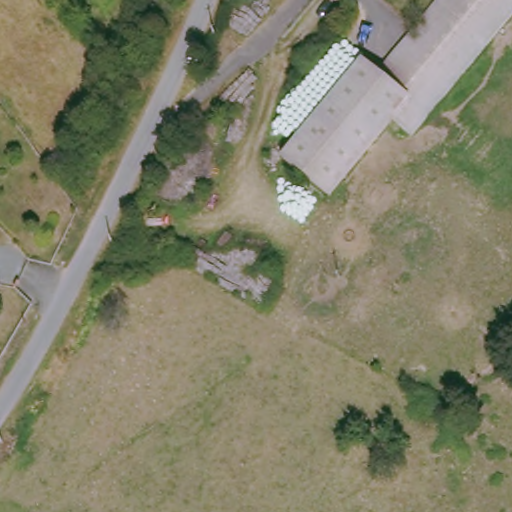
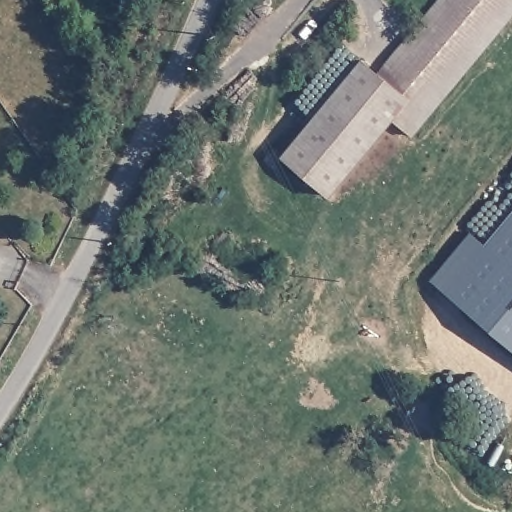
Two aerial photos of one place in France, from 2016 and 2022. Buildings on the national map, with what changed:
unchanged [(392,120),(329,196),(282,158),(362,61),(378,74),(440,0),(512,0),(512,15),(411,136),(392,120)]
new [(432,280),(470,233),(485,246),(512,214),(512,348),(432,280)]

